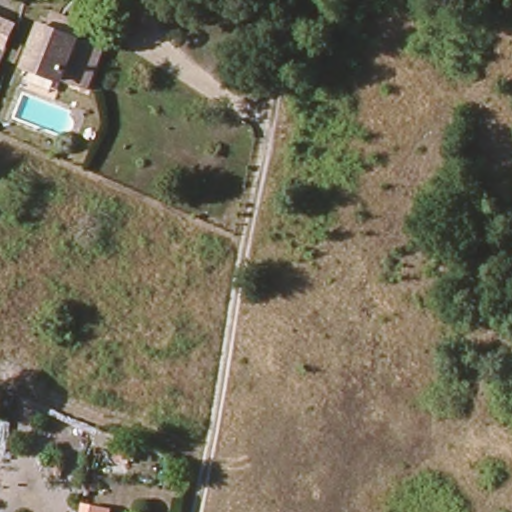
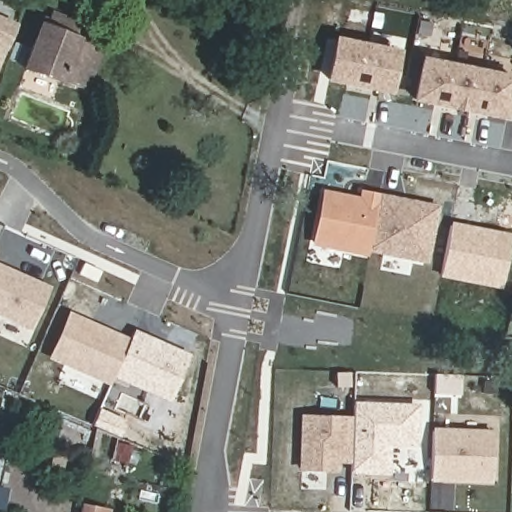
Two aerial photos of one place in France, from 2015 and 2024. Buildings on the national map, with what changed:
unchanged [(28,67),(45,24),(46,25),(51,11),(81,23),(76,36),(104,47),(87,90),(28,67)]
unchanged [(17,25),(0,65),(0,18),(17,25)]
new [(401,51),(392,95),(325,82),(334,37),(401,51)]
unchanged [(24,65),(11,59),(17,42),(31,47),(24,65)]
new [(425,56),(512,77),(512,103),(510,120),(501,119),(415,102),(425,56)]
new [(367,251),(367,257),(312,243),(322,190),(358,197),(360,189),(438,207),(429,264),(367,251)]
new [(512,233),(512,238),(501,290),(439,277),(451,221),(512,233)]
new [(52,288),(32,327),(0,315),(0,264),(52,288)]
new [(113,378),(109,386),(47,359),(69,311),(130,337),(133,329),(191,354),(169,403),(113,378)]
new [(418,447),(390,446),(389,475),(350,474),(352,464),(339,463),(339,473),(298,472),(300,415),(352,415),(353,401),(420,403),(418,447)]
unchanged [(120,459),(122,451),(100,445),(104,428),(106,429),(125,437),(125,442),(139,446),(134,463),(120,459)]
new [(491,484),(430,482),(432,428),(493,430),(491,484)]
unchanged [(67,476),(57,474),(61,456),(72,459),(67,476)]
unchanged [(78,509),(92,512),(78,512),(78,509)]

